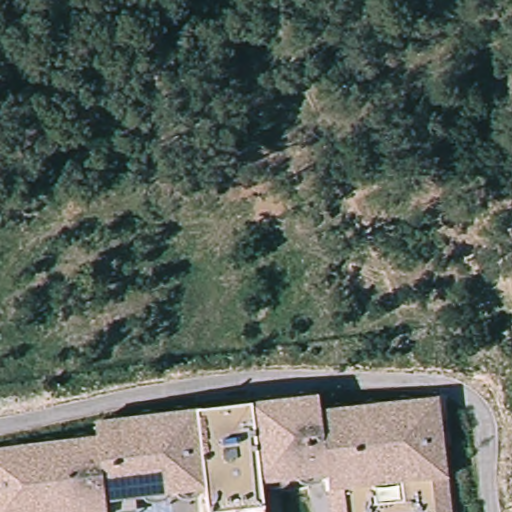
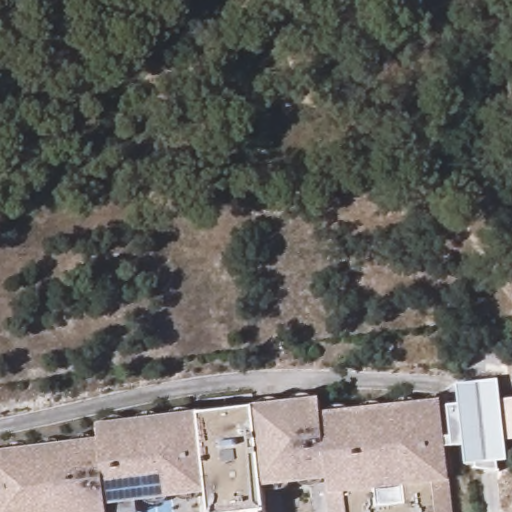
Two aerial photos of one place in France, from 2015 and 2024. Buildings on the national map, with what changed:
new [(452,436),(448,406),(459,404),(456,383),(479,382),(498,380),(501,399),(512,398),(512,441),(506,442),(507,460),(498,461),(499,472),(478,469),(478,464),(466,465),(464,444),(453,446),(446,448),(444,437),(452,436)]
unchanged [(93,424),(197,412),(195,399),(250,392),(252,406),(319,398),(321,413),(440,399),(453,512),(333,512),(329,476),(261,484),(264,512),(208,512),(206,491),(102,503),(103,512),(0,512),(0,451),(95,439),(93,424)]

